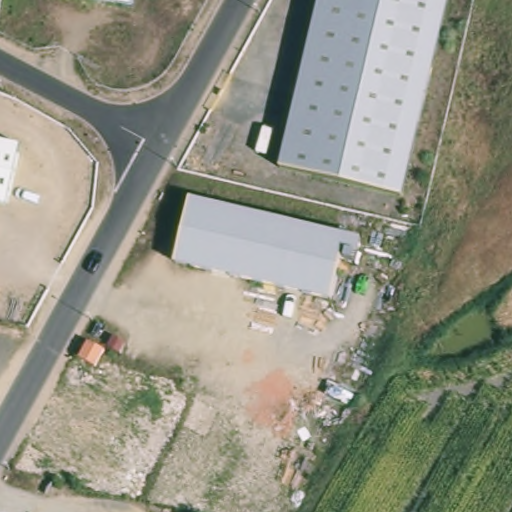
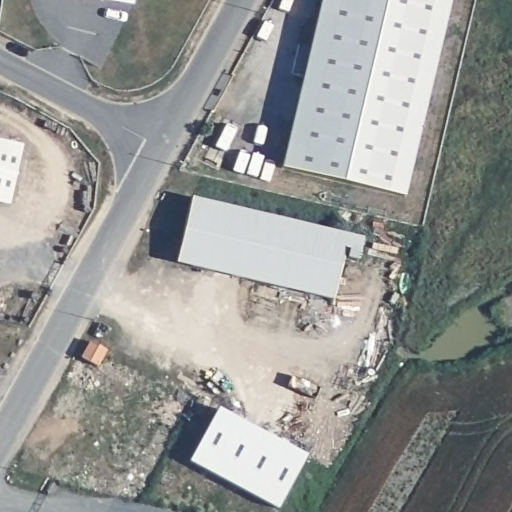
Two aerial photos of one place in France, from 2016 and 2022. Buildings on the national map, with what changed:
unchanged [(87,0),(131,0),(130,7),(87,0)]
unchanged [(281,169),(320,0),(448,0),(403,197),(281,169)]
unchanged [(19,147),(7,206),(0,204),(0,142),(19,147)]
unchanged [(190,199),(347,237),(341,259),(331,300),(191,267),(175,262),(182,235),(190,199)]
unchanged [(99,352),(91,367),(75,358),(83,342),(99,352)]
new [(188,461),(216,408),(305,455),(275,509),(188,461)]

